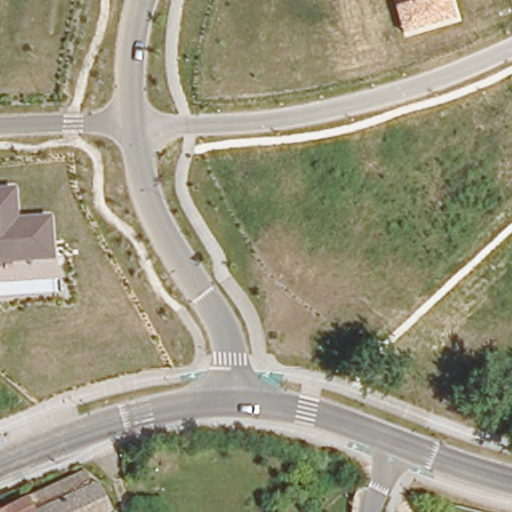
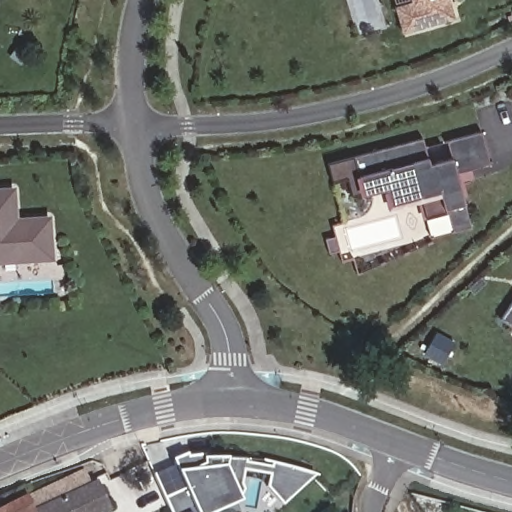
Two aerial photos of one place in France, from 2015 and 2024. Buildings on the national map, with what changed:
unchanged [(455,16),(402,32),(395,3),(407,0),(449,0),(455,16)]
new [(451,232),(446,212),(422,218),(416,196),(388,204),(384,187),(361,193),(350,196),(346,178),(332,181),(327,163),(422,138),(428,155),(430,162),(450,157),(446,140),(481,131),(489,164),(457,171),(465,204),(471,226),(451,232)]
unchanged [(19,216),(53,215),(56,259),(0,263),(0,188),(16,186),(19,216)]
new [(187,453),(189,457),(204,454),(205,458),(228,458),(249,459),(249,461),(246,461),(246,462),(271,467),(271,464),(262,462),(262,460),(272,462),(290,467),(317,475),(282,506),(266,488),(268,476),(244,471),(242,484),(245,490),(241,498),(242,502),(220,512),(170,512),(164,497),(185,488),(178,472),(172,460),(187,453)]
unchanged [(89,491),(96,489),(106,512),(10,512),(82,476),(89,491)]

